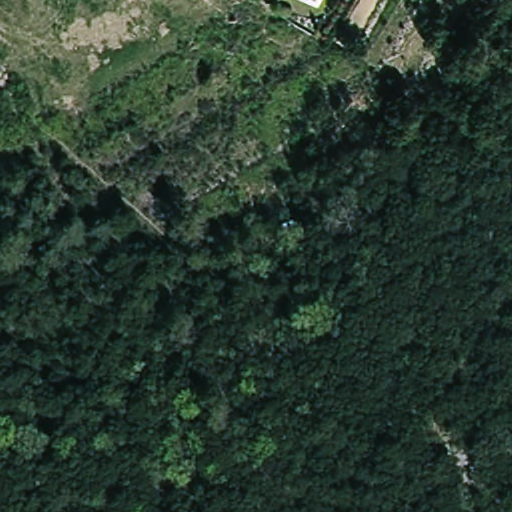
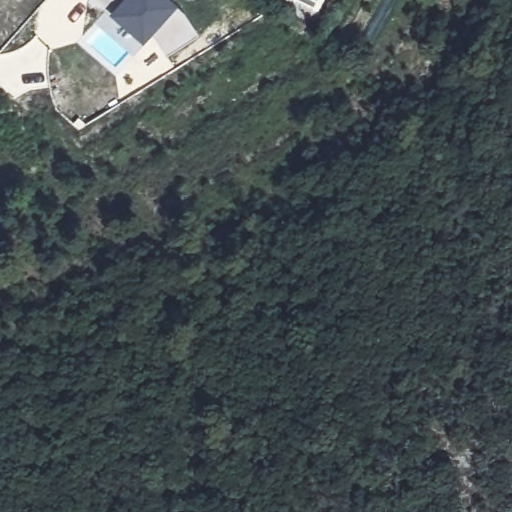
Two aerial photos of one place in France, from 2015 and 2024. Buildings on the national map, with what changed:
new [(184,10),(200,34),(167,56),(153,36),(150,32),(132,52),(95,21),(107,9),(88,0),(173,0),(184,10)]

